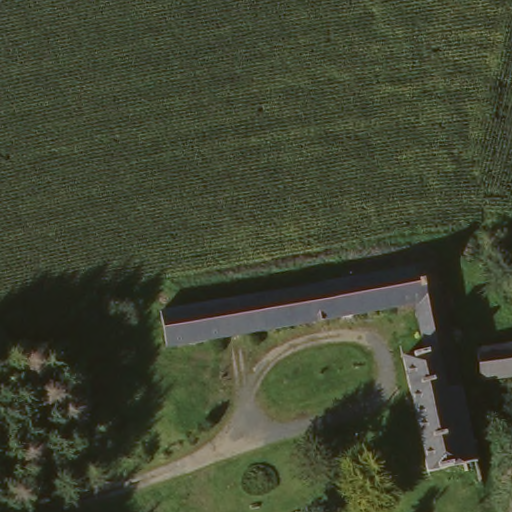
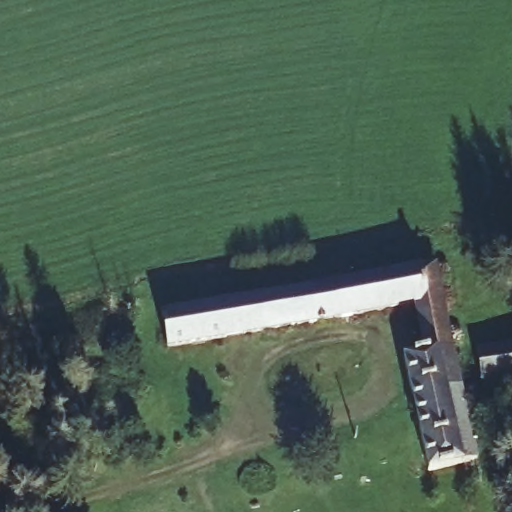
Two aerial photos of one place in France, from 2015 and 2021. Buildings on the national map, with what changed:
unchanged [(433,266),(441,303),(408,309),(162,350),(157,313),(433,266)]
unchanged [(441,303),(449,345),(416,351),(408,309),(441,303)]
unchanged [(417,354),(416,351),(449,345),(457,387),(472,462),(422,472),(401,357),(417,354)]
unchanged [(512,351),(512,382),(477,388),(473,357),(512,351)]

